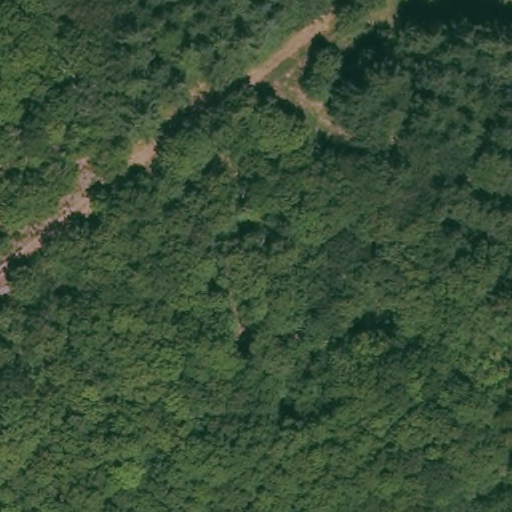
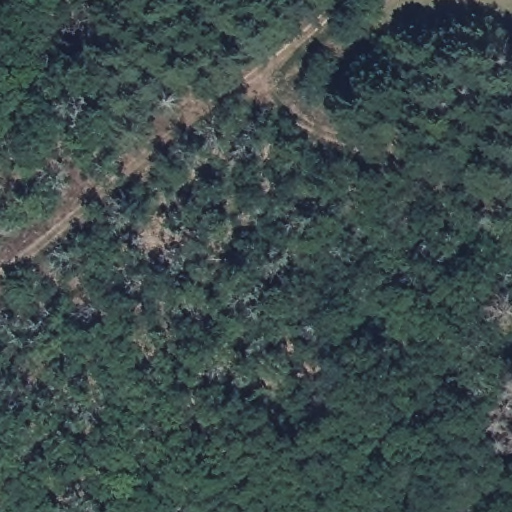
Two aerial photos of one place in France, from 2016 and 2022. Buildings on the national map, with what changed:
unchanged [(129,50),(130,63),(114,63),(112,50),(129,50)]

